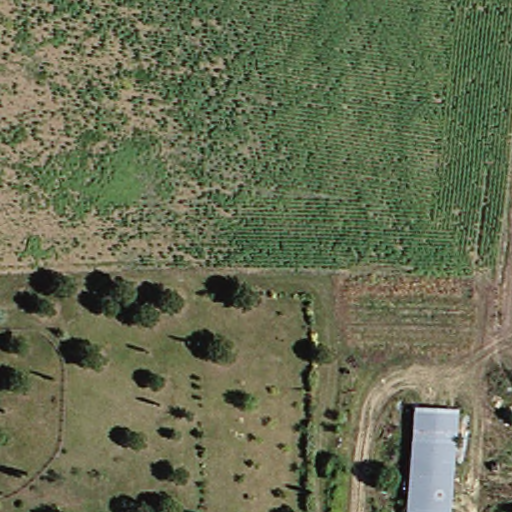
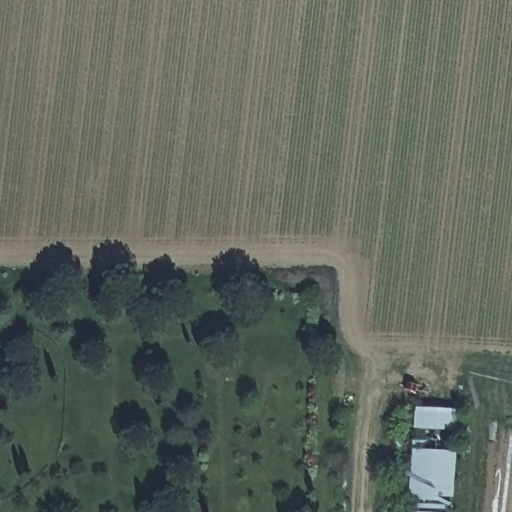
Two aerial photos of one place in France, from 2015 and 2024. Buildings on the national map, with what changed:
unchanged [(404,512),(411,406),(453,410),(447,512),(404,512)]

